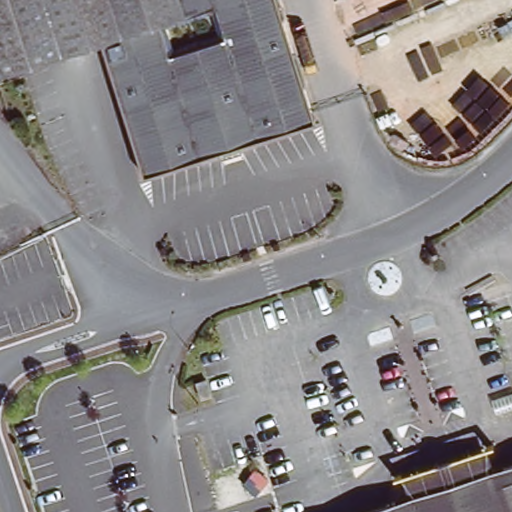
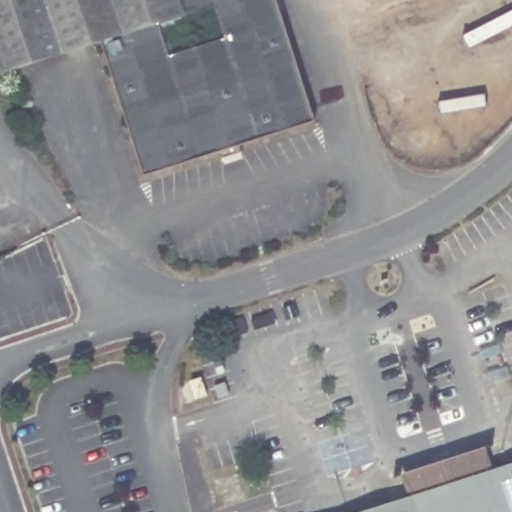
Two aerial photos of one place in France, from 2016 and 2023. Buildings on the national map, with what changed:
unchanged [(215,154),(203,160),(139,178),(98,42),(0,72),(0,0),(273,0),(280,14),(310,104),(308,104),(317,125),(300,130),(240,151),(241,155),(219,163),(215,154)]
unchanged [(280,0),(282,8),(278,9),(280,14),(273,0),(280,0)]
unchanged [(210,397),(200,399),(195,384),(205,382),(210,397)]
unchanged [(414,481),(489,457),(495,472),(419,497),(414,481)]
unchanged [(422,507),(419,497),(495,472),(497,482),(512,477),(512,512),(405,512),(422,507)]

